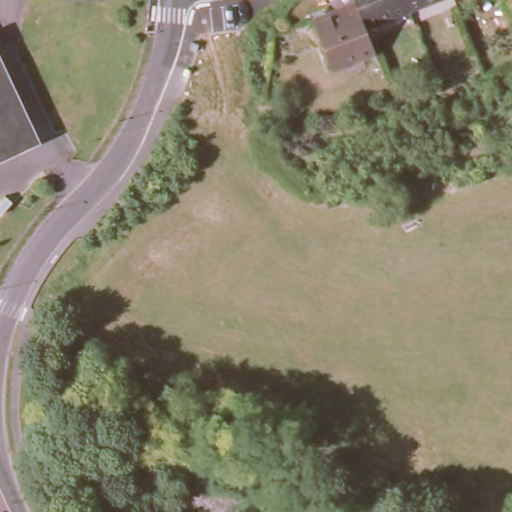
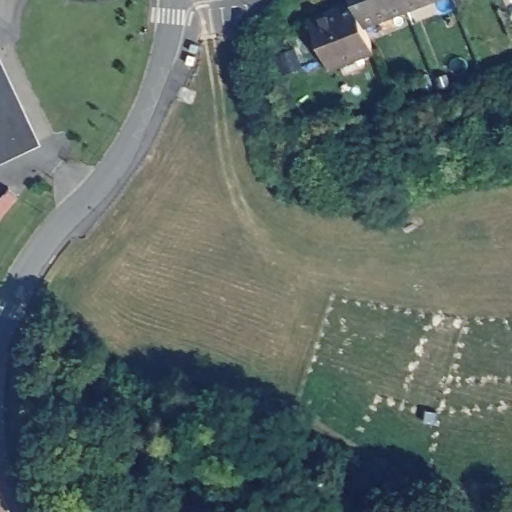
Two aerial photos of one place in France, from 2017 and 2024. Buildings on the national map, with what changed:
unchanged [(333,62),(315,13),(349,0),(361,0),(368,19),(378,45),(333,62)]
unchanged [(368,19),(361,0),(412,0),(413,2),(368,19)]
unchanged [(413,2),(412,0),(420,0),(413,2)]
unchanged [(0,156),(0,54),(39,138),(0,156)]

